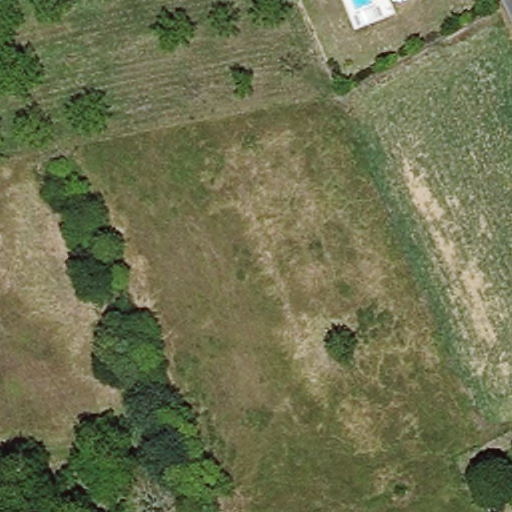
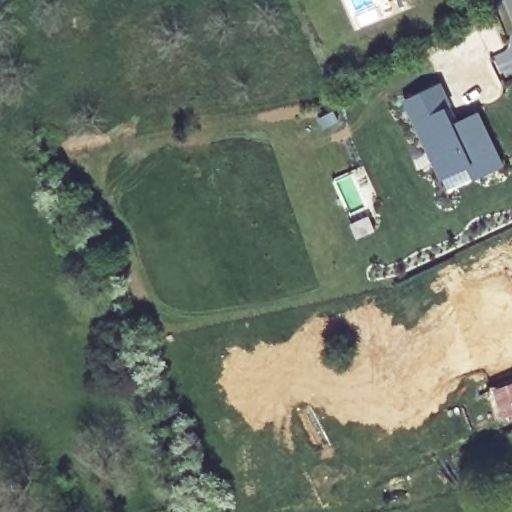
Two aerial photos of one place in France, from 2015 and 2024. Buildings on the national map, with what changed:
new [(416,119),(405,96),(440,81),(450,104),(445,106),(452,121),(477,110),(502,164),(477,176),(470,163),(448,174),(442,177),(416,119)]

